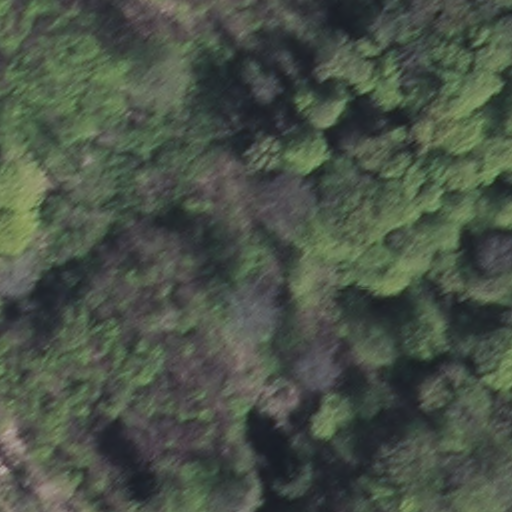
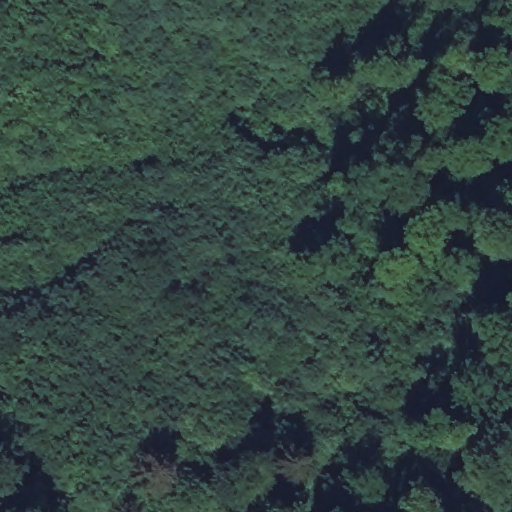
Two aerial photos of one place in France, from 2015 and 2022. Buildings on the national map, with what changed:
unchanged [(230,145),(215,161),(196,172),(187,163),(184,160),(189,144),(208,125),(230,145)]

